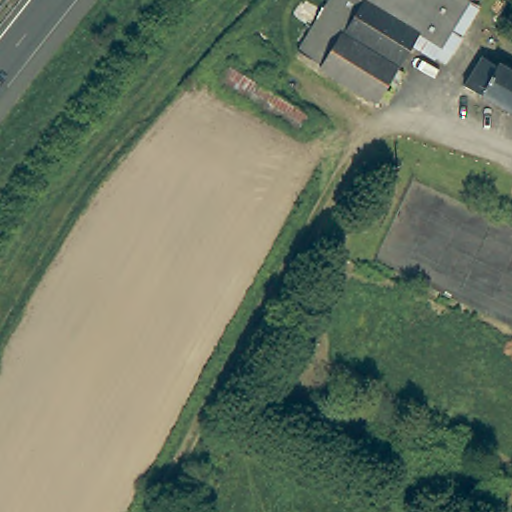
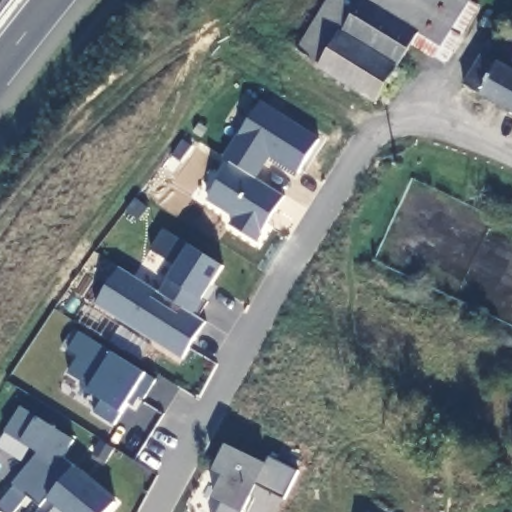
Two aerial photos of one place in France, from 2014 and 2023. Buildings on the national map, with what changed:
unchanged [(359,0),(340,31),(317,64),(292,48),(322,0),(359,0)]
unchanged [(390,64),(340,31),(359,0),(470,0),(441,44),(435,52),(410,35),(390,64)]
unchanged [(355,88),(317,64),(340,31),(390,64),(369,96),(355,88)]
unchanged [(465,82),(481,55),(484,56),(498,64),(501,61),(512,68),(512,107),(484,92),(465,82)]
new [(321,139),(297,174),(271,156),(257,178),(285,196),(257,243),(228,225),(233,218),(207,201),(229,161),(224,156),(261,101),(321,139)]
new [(212,285),(215,289),(197,318),(206,323),(183,359),(96,304),(119,267),(161,292),(176,265),(151,250),(164,229),(189,246),(223,267),(212,285)]
new [(147,404),(138,399),(120,429),(93,415),(100,403),(79,392),(83,387),(67,376),(75,359),(66,353),(81,329),(161,378),(147,404)]
new [(65,457),(74,467),(40,507),(28,496),(16,512),(5,512),(0,507),(0,502),(13,486),(11,484),(30,463),(39,455),(21,442),(4,432),(21,407),(36,417),(73,442),(65,457)]
new [(222,502),(213,498),(224,476),(214,471),(226,446),(265,465),(269,457),(299,471),(285,500),(256,485),(242,512),(216,512),(222,502)]
new [(120,505),(114,512),(35,512),(40,507),(74,467),(120,505)]

